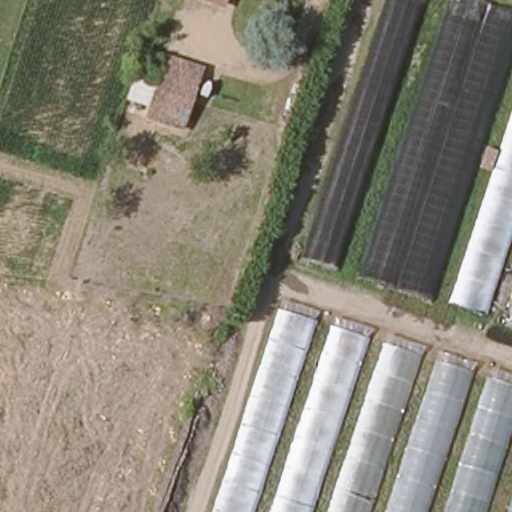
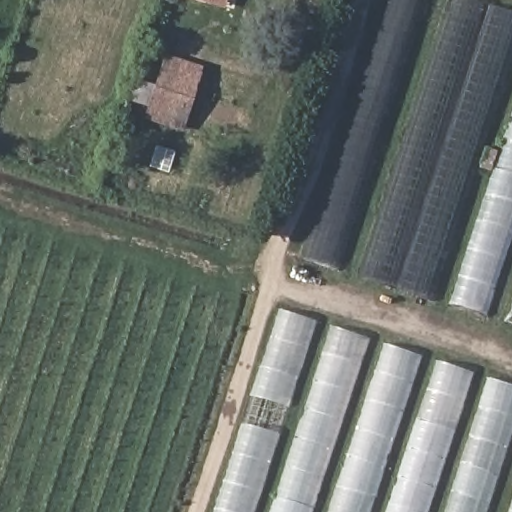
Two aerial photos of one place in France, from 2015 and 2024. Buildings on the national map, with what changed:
unchanged [(227,0),(225,6),(205,0),(227,0)]
unchanged [(434,303),(431,313),(396,304),(400,294),(296,260),(384,0),(464,0),(512,16),(512,328),(434,303)]
unchanged [(187,121),(152,111),(165,66),(200,78),(187,121)]
unchanged [(285,303),(512,376),(512,512),(209,512),(285,303)]

